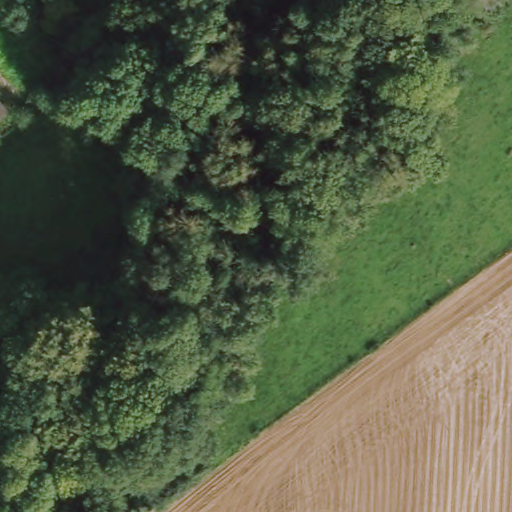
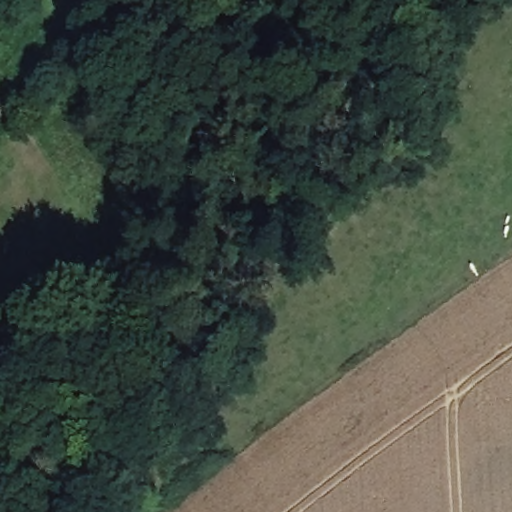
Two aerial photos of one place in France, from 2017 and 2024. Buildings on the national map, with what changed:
unchanged [(1,111),(10,123),(0,132),(0,113),(1,111)]

